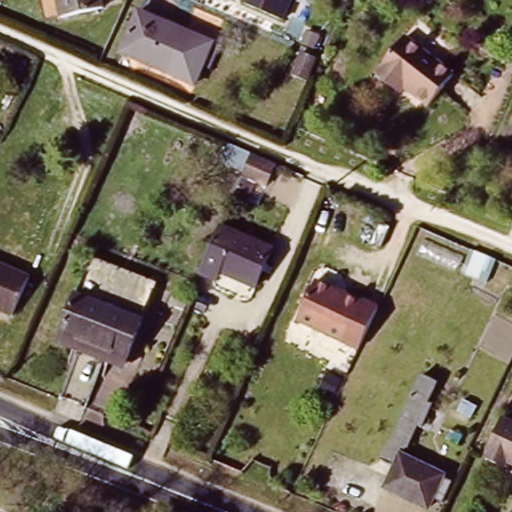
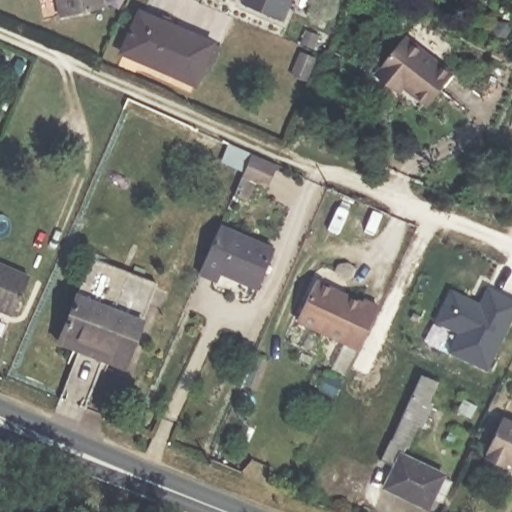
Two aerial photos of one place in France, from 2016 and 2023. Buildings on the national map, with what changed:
unchanged [(59,15),(56,0),(100,0),(101,5),(59,15)]
unchanged [(289,0),(282,17),(243,0),(289,0)]
unchanged [(204,66),(196,62),(188,81),(115,50),(133,8),(206,40),(213,44),(204,66)]
unchanged [(394,87),(375,72),(404,35),(453,72),(428,104),(405,85),(400,92),(394,87)]
unchanged [(296,50),(309,55),(299,79),(286,73),(296,50)]
unchanged [(13,56),(20,60),(15,73),(6,69),(13,56)]
unchanged [(226,142),(245,150),(241,161),(221,153),(226,142)]
unchanged [(224,220),(279,242),(263,281),(226,265),(223,273),(205,266),(224,220)]
demolished [(473,275),(463,271),(460,270),(469,249),(473,250),(482,254),(473,275)]
unchanged [(87,262),(109,270),(73,355),(54,348),(87,262)]
unchanged [(30,276),(13,315),(0,309),(0,263),(30,276)]
unchanged [(100,365),(74,355),(73,355),(109,270),(153,287),(124,362),(120,373),(100,365)]
unchanged [(316,283),(361,305),(363,301),(379,309),(359,351),(298,322),(316,283)]
new [(450,352),(458,333),(436,322),(452,289),(479,302),(487,286),(512,299),(512,320),(488,371),(450,352)]
unchanged [(442,496),(433,492),(429,502),(385,481),(394,460),(381,454),(391,432),(392,433),(422,368),(438,375),(428,395),(432,397),(421,421),(417,420),(407,441),(405,441),(402,448),(444,468),(443,470),(452,475),(442,496)]
unchanged [(487,445),(502,412),(512,417),(512,457),(507,455),(504,461),(486,452),(489,446),(487,445)]

